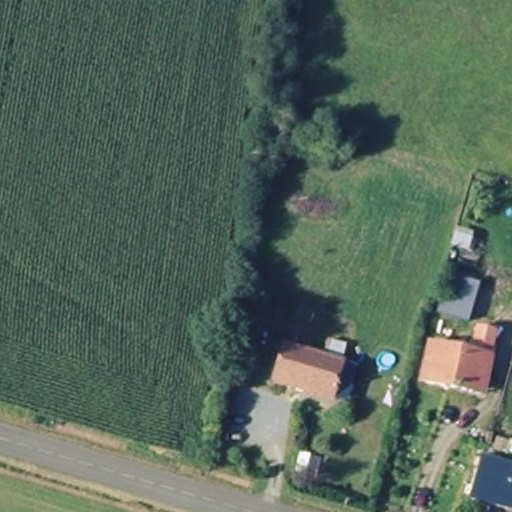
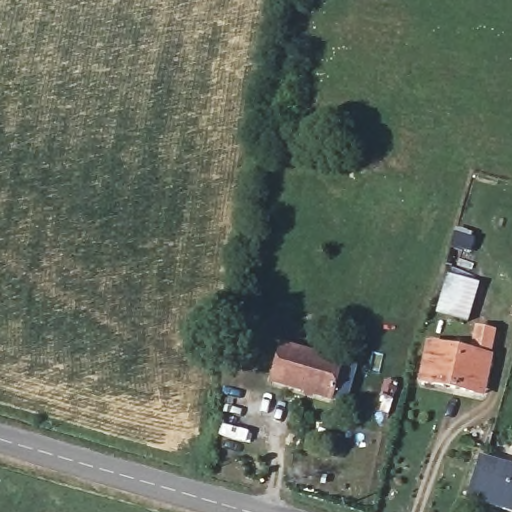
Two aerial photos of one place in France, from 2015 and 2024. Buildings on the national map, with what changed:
unchanged [(442,242),(467,247),(462,269),(437,263),(442,242)]
unchanged [(447,281),(479,290),(468,324),(439,318),(447,281)]
unchanged [(426,349),(470,355),(473,332),(490,334),(486,358),(488,359),(482,394),(420,385),(426,349)]
unchanged [(284,341),(342,358),(331,399),(272,381),(284,341)]
unchanged [(480,468),(488,470),(493,452),(512,457),(512,510),(471,500),(480,468)]

